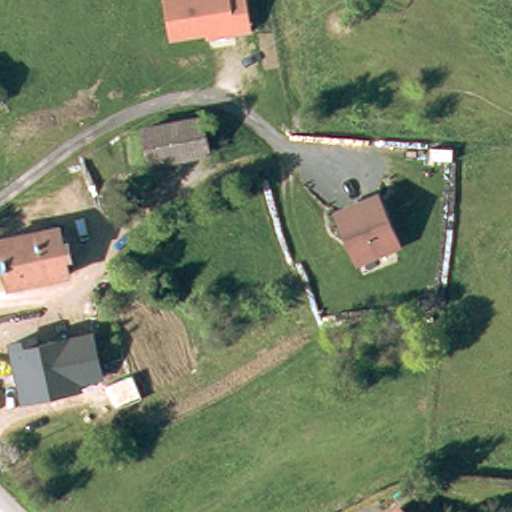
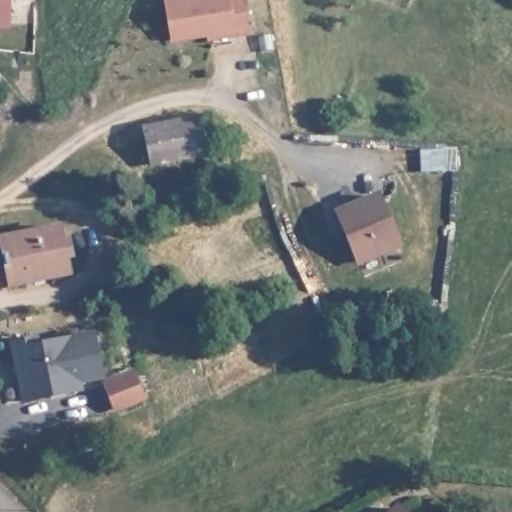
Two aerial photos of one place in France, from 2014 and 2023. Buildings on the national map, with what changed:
new [(11,25),(0,25),(0,0),(11,0),(11,25)]
unchanged [(249,27),(170,39),(163,0),(244,0),(249,27)]
unchanged [(138,175),(132,142),(214,124),(219,158),(138,175)]
unchanged [(339,210),(380,193),(402,243),(360,260),(339,210)]
unchanged [(2,237),(18,233),(22,248),(42,243),(61,238),(70,276),(51,281),(12,291),(4,253),(6,253),(2,237)]
unchanged [(20,372),(14,343),(35,338),(37,346),(93,332),(103,374),(81,380),(84,388),(46,398),(27,403),(20,372)]
unchanged [(401,512),(396,512),(399,509),(401,512)]

